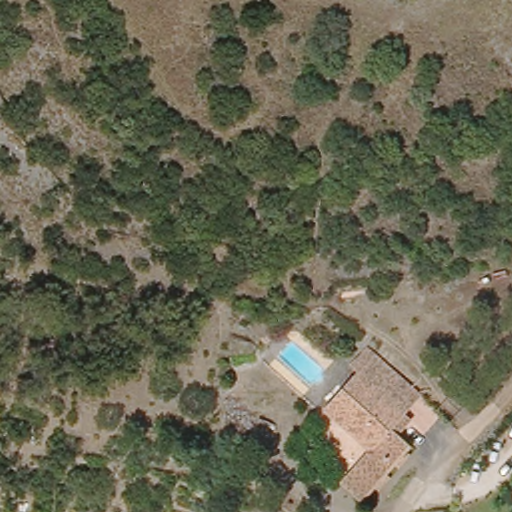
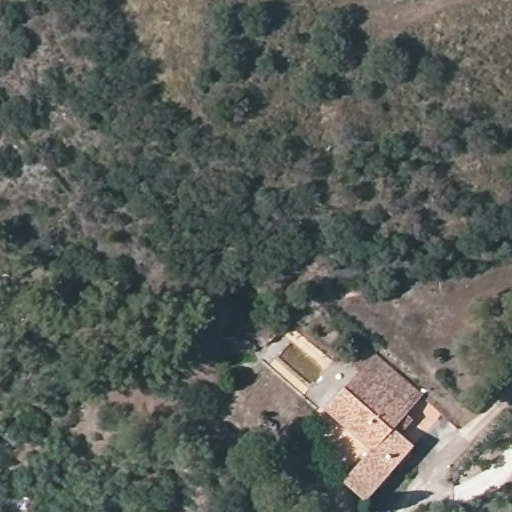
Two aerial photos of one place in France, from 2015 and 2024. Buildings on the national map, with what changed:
unchanged [(261,355),(248,370),(236,357),(248,344),(261,355)]
unchanged [(378,351),(427,395),(408,417),(358,374),(378,351)]
unchanged [(358,374),(408,417),(390,436),(340,397),(358,374)]
unchanged [(331,391),(340,397),(390,436),(396,440),(411,453),(366,506),(342,487),(360,468),(333,445),(313,428),(330,409),(331,391)]

